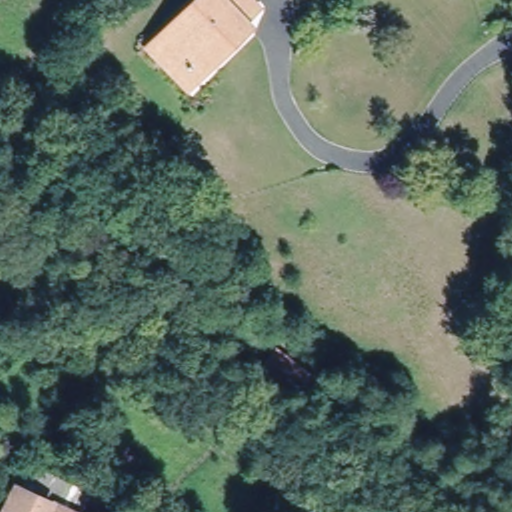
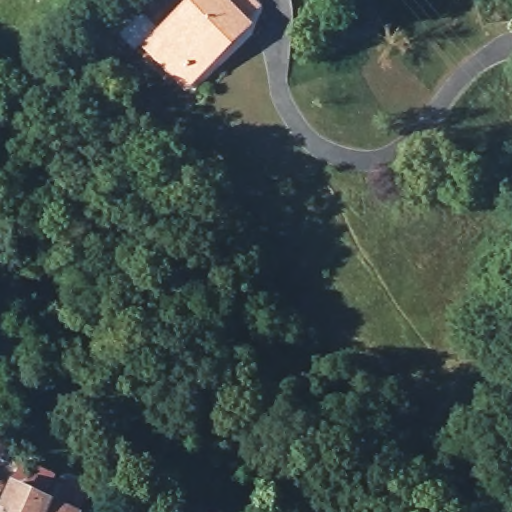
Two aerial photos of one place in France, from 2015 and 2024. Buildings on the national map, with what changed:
unchanged [(189,0),(252,0),(247,6),(253,11),(203,65),(163,27),(189,0)]
unchanged [(191,78),(150,42),(163,27),(203,65),(191,78)]
unchanged [(15,487),(23,468),(89,499),(82,512),(66,512),(15,487)]
unchanged [(15,487),(66,512),(3,512),(15,487)]

